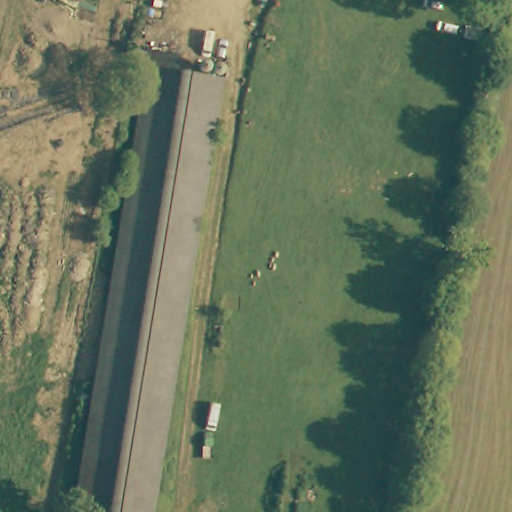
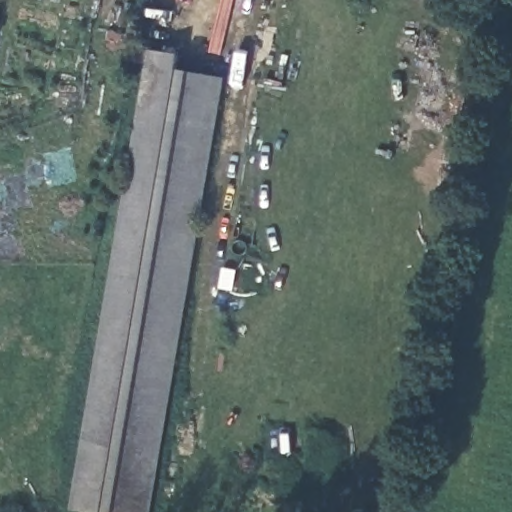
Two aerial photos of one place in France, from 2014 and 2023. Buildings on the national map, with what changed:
unchanged [(187,60),(184,75),(227,83),(149,512),(92,512),(78,510),(158,55),(187,60)]

